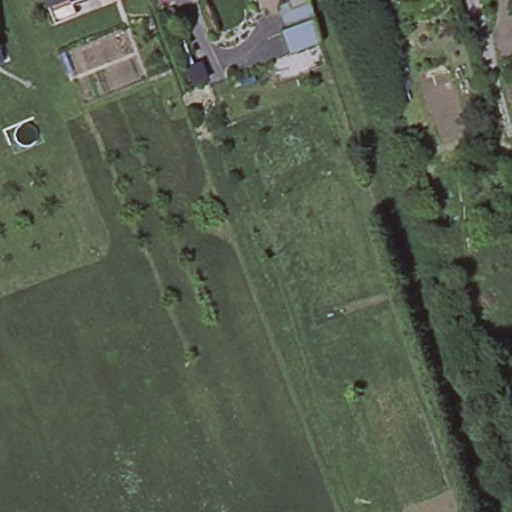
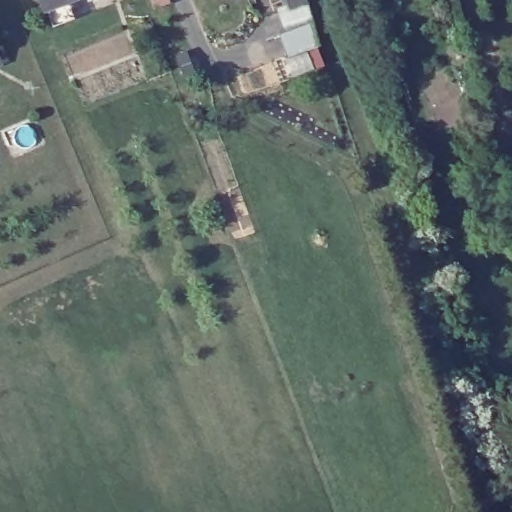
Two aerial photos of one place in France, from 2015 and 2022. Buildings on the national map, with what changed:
unchanged [(48,19),(40,0),(64,0),(68,11),(48,19)]
unchanged [(293,0),(309,0),(311,3),(308,4),(296,8),(293,0)]
unchanged [(315,26),(322,47),(289,58),(281,37),(315,26)]

